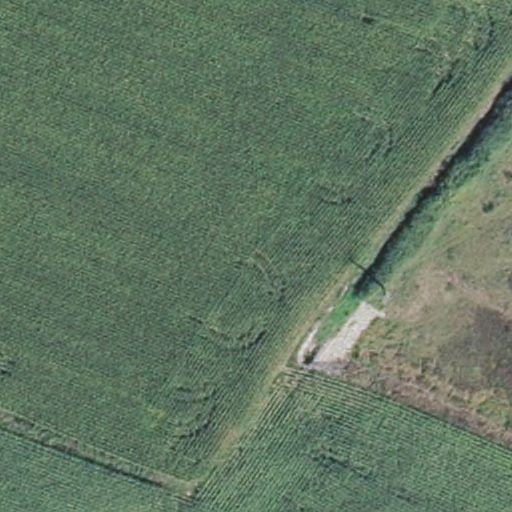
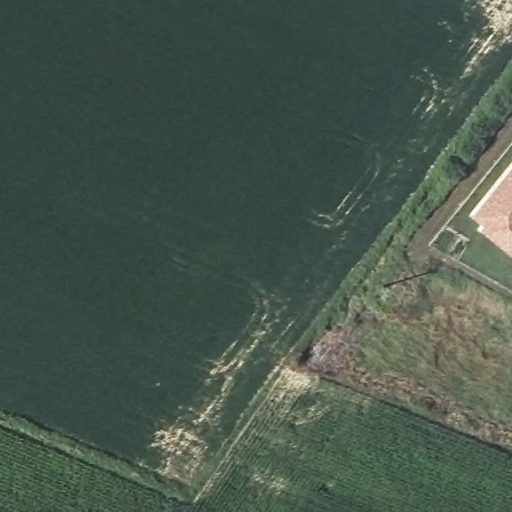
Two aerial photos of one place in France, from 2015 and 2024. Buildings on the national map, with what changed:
new [(481,230),(486,225),(472,215),(512,166),(512,255),(481,230)]

